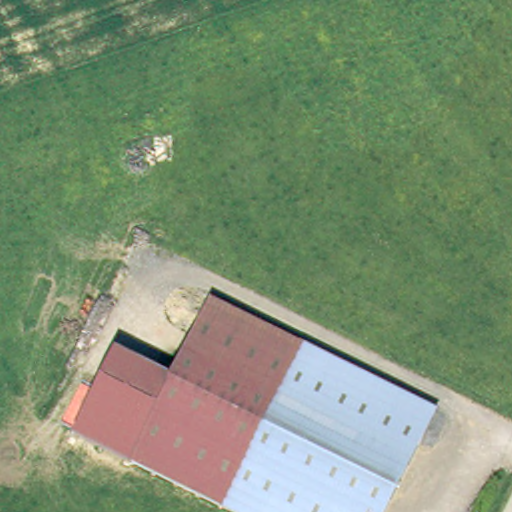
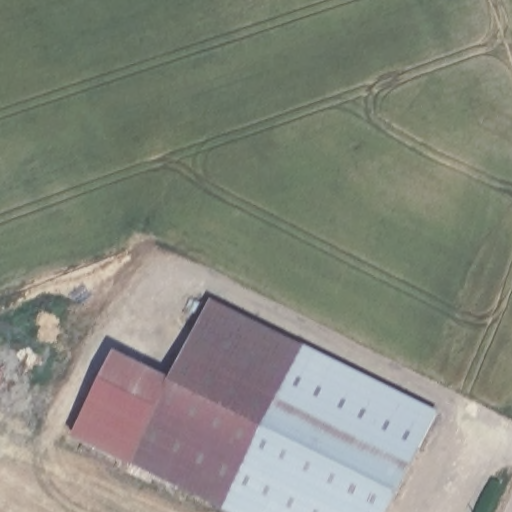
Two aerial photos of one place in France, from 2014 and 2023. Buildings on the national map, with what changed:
unchanged [(432,401),(383,512),(248,512),(135,461),(160,406),(172,380),(210,297),(432,401)]
unchanged [(102,379),(115,353),(172,380),(160,406),(102,379)]
unchanged [(133,464),(75,437),(102,379),(160,406),(135,461),(133,464)]

